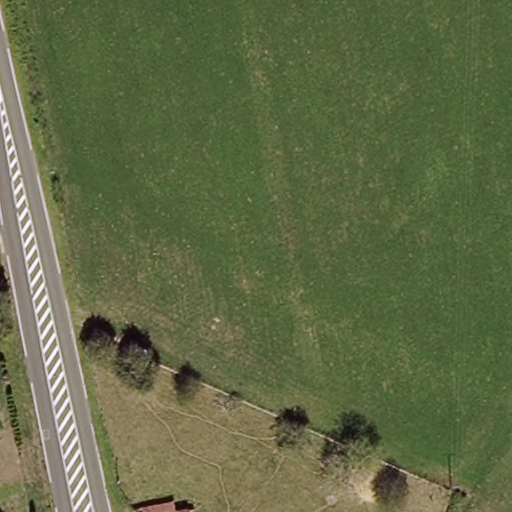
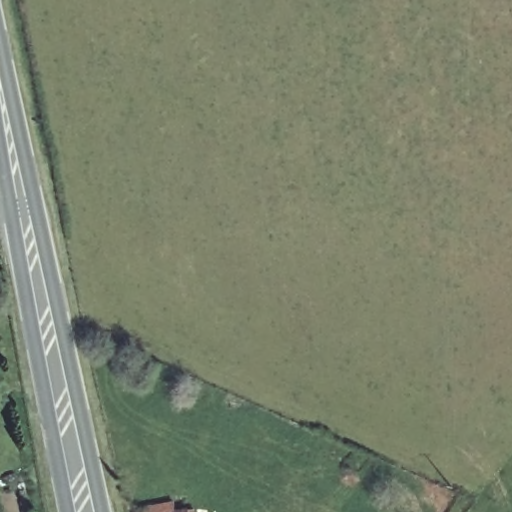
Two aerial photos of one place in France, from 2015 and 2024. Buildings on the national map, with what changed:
unchanged [(139,512),(175,506),(175,512),(139,512)]
unchanged [(189,511),(189,512),(180,512),(189,511)]

